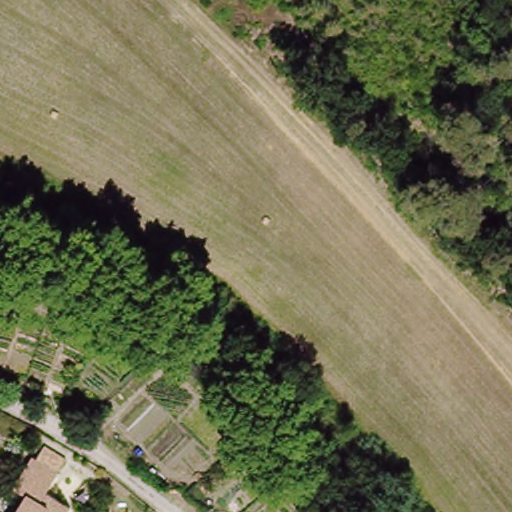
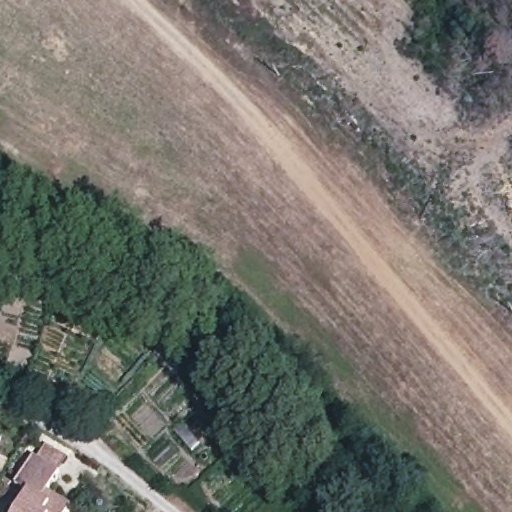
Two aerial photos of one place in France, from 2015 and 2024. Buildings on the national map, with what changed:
unchanged [(60,288),(54,286),(58,275),(65,276),(60,288)]
unchanged [(13,485),(30,456),(35,459),(43,446),(63,458),(55,471),(46,492),(70,507),(68,512),(16,512),(25,493),(13,485)]
unchanged [(0,470),(0,454),(6,456),(0,470)]

